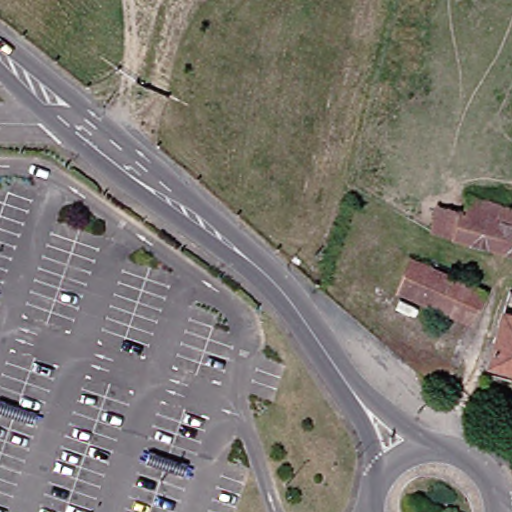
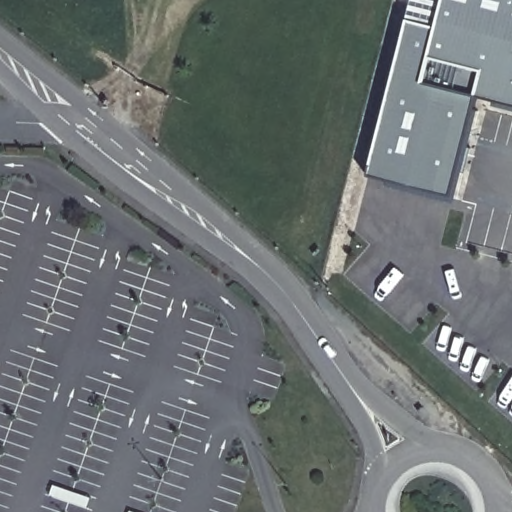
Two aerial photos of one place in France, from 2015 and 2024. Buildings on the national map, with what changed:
new [(475,96),(450,196),(368,174),(406,22),(434,29),(442,0),(512,0),(512,105),(475,96)]
demolished [(512,211),(512,256),(444,237),(445,236),(451,212),(455,196),(490,205),(512,211)]
demolished [(466,318),(392,286),(406,254),(480,286),(466,318)]
demolished [(512,295),(512,372),(484,363),(505,292),(512,295)]

